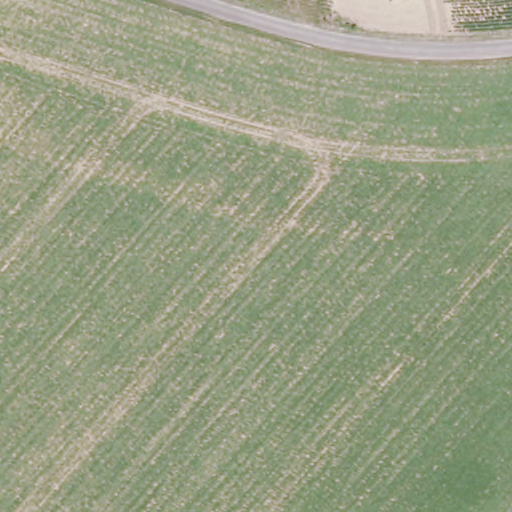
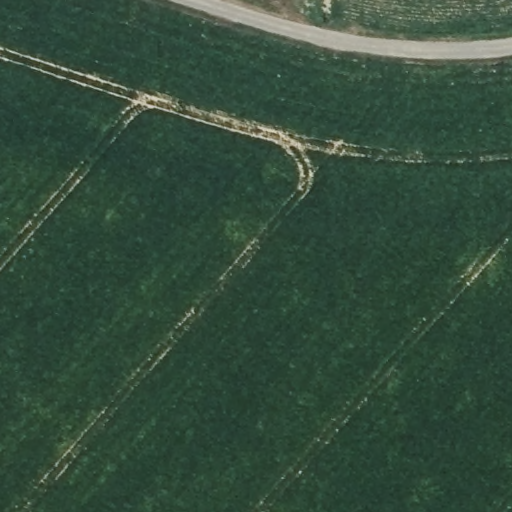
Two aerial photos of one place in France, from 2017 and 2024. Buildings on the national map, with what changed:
[]

